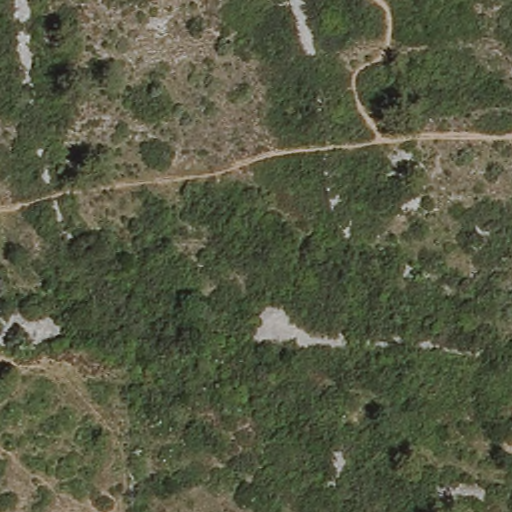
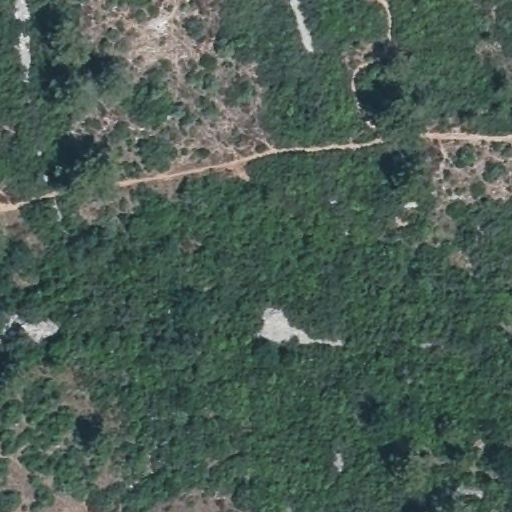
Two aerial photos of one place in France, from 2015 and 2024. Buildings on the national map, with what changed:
unchanged [(413,152),(419,170),(400,179),(394,161),(413,152)]

